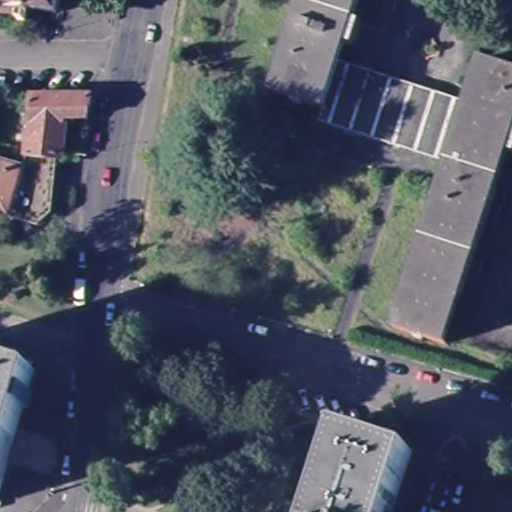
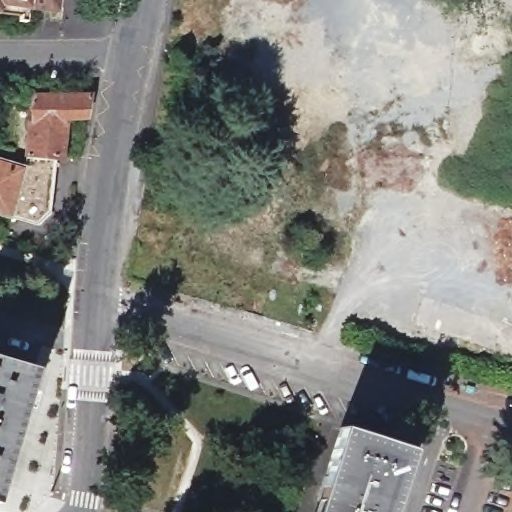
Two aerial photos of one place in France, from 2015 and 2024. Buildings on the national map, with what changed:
unchanged [(25,11),(24,25),(15,24),(15,18),(0,16),(0,0),(17,0),(17,11),(25,11)]
unchanged [(31,11),(25,11),(17,11),(17,0),(56,0),(55,11),(55,15),(31,11)]
demolished [(325,113),(274,94),(304,0),(361,0),(340,63),(325,113)]
demolished [(480,61),(512,72),(512,149),(510,156),(450,346),(395,329),(448,165),(466,105),(480,61)]
demolished [(340,63),(466,105),(448,165),(320,124),(325,113),(340,63)]
unchanged [(24,158),(30,112),(31,101),(90,99),(84,122),(65,122),(61,159),(54,159),(24,158)]
unchanged [(24,158),(54,159),(47,212),(36,228),(26,224),(0,216),(0,163),(22,169),(22,167),(24,158)]
unchanged [(35,369),(0,490),(0,358),(35,369)]
unchanged [(341,429),(411,452),(392,512),(314,512),(340,431),(341,429)]

